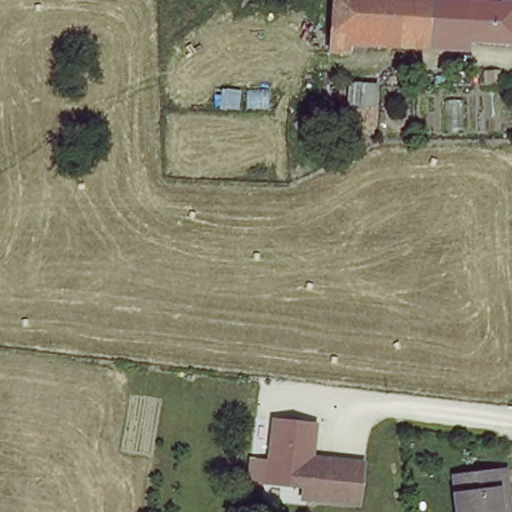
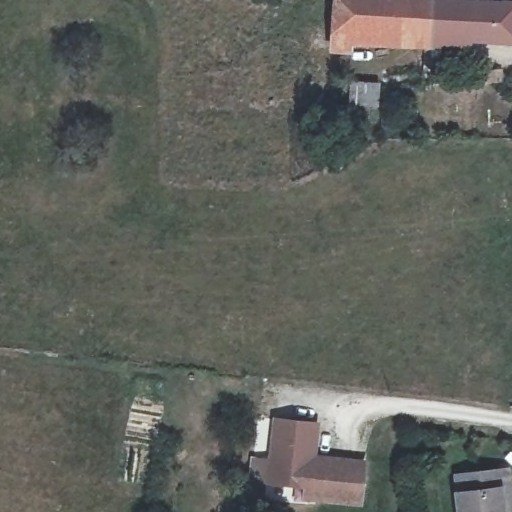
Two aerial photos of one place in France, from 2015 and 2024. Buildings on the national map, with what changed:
unchanged [(426,45),(408,44),(409,34),(348,30),(347,49),(332,48),(333,0),(496,0),(512,1),(512,40),(427,35),(426,45)]
unchanged [(485,100),(486,84),(502,84),(502,101),(485,100)]
unchanged [(271,491),(276,420),(319,425),(315,483),(282,480),(281,492),(271,491)]
unchanged [(369,465),(363,512),(305,506),(306,491),(315,492),(319,460),(369,465)]
unchanged [(461,476),(508,470),(511,499),(503,500),(505,512),(465,512),(461,476)]

